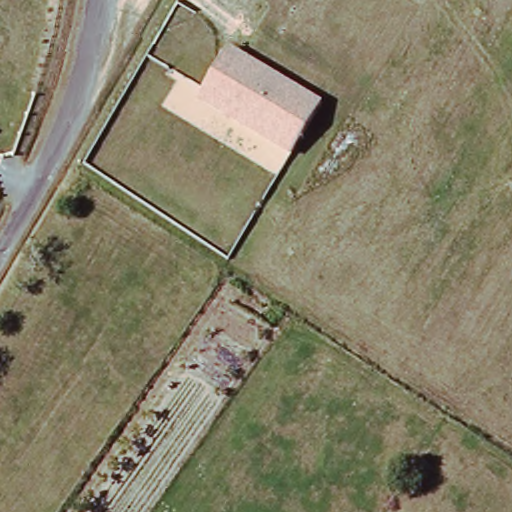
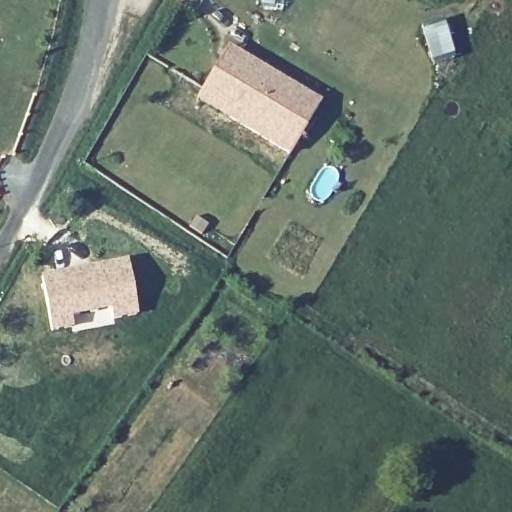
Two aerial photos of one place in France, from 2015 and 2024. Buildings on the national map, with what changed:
unchanged [(323,99),(291,156),(196,97),(229,44),(323,99)]
new [(127,258),(139,317),(112,322),(110,311),(76,321),(77,328),(50,333),(40,273),(127,258)]

